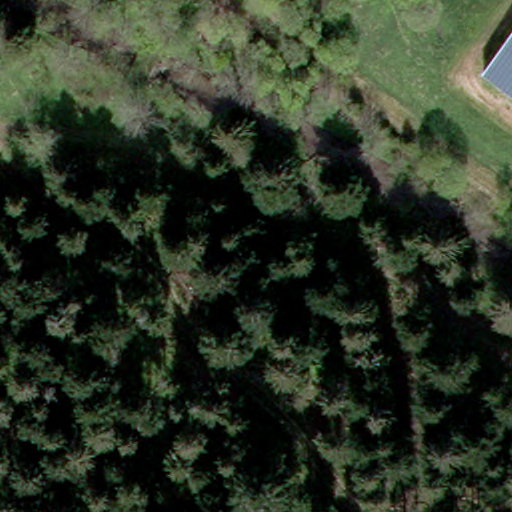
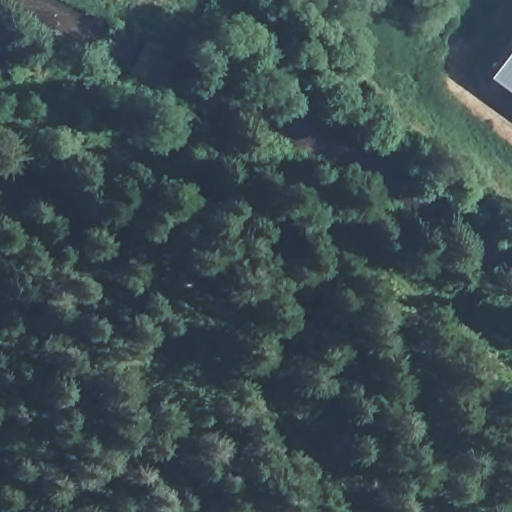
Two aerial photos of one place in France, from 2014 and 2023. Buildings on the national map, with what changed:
unchanged [(512,100),(487,82),(512,49),(512,100)]

